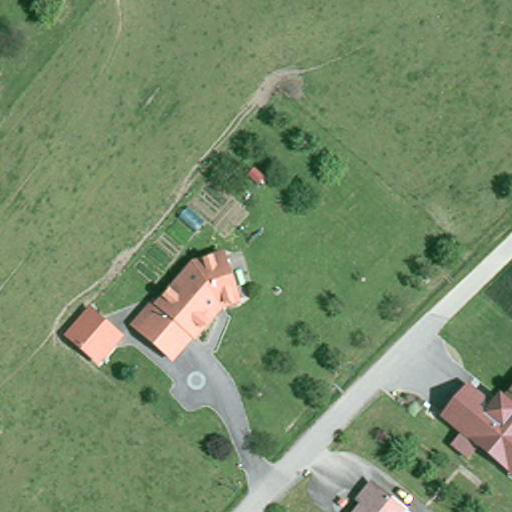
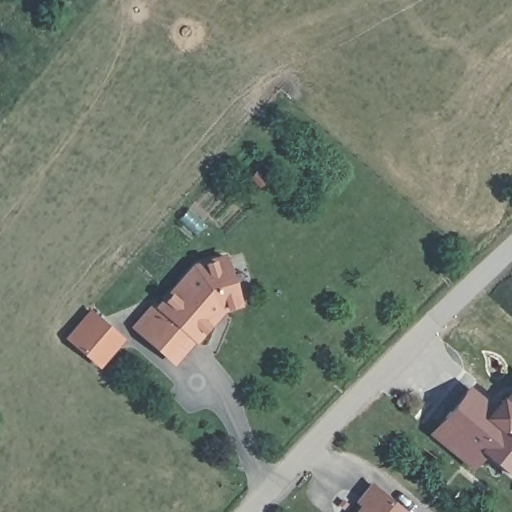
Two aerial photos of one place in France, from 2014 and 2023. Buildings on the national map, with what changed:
unchanged [(151,305),(159,311),(192,270),(224,259),(241,304),(223,311),(218,308),(213,315),(217,319),(197,343),(193,340),(174,363),(140,336),(132,330),(151,305)]
unchanged [(125,337),(100,365),(66,337),(90,309),(125,337)]
unchanged [(499,393),(512,380),(512,475),(443,414),(469,383),(493,401),(499,393)]
unchanged [(402,512),(363,512),(365,509),(361,505),(373,488),(402,512)]

